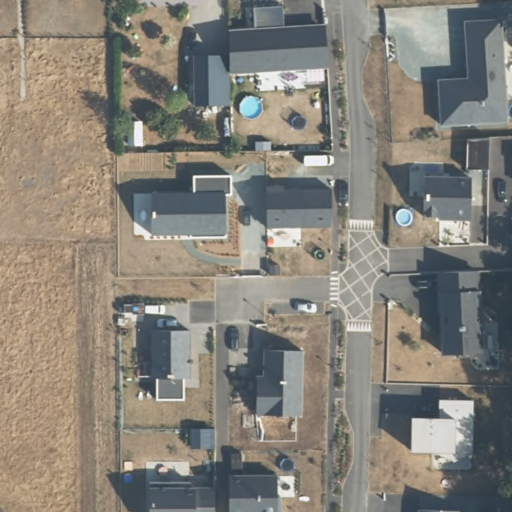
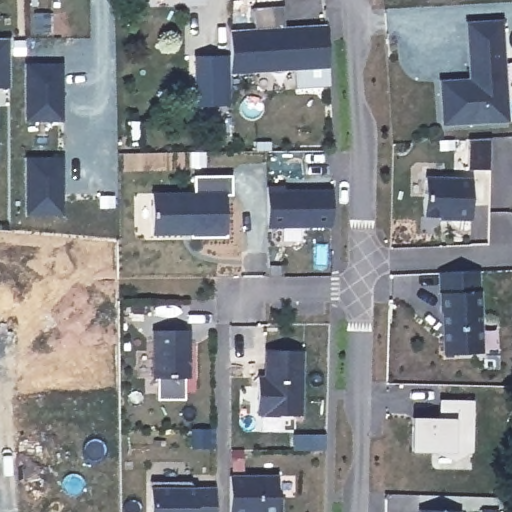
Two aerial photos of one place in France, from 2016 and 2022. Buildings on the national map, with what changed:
unchanged [(231,33),(255,30),(254,9),(281,9),(283,28),(324,25),(327,69),(233,74),(232,53),(231,33)]
unchanged [(467,25),(502,23),(506,124),(441,126),(438,82),(469,81),(467,25)]
new [(12,88),(0,88),(0,40),(9,40),(12,88)]
unchanged [(195,55),(232,53),(233,74),(234,103),(197,104),(195,55)]
new [(24,64),(62,64),(63,122),(24,121),(24,64)]
new [(467,140),(490,139),(489,171),(467,171),(467,140)]
new [(61,155),(61,215),(24,216),(24,156),(61,155)]
unchanged [(154,195),(197,193),(196,177),(231,176),(231,194),(230,195),(229,237),(195,238),(194,235),(154,235),(154,195)]
unchanged [(472,178),(472,221),(426,219),(426,176),(472,178)]
unchanged [(270,188),(285,187),(285,192),(333,189),(333,227),(268,228),(270,188)]
unchanged [(474,273),(479,354),(444,355),(438,274),(474,273)]
unchanged [(188,332),(189,379),(150,378),(150,333),(188,332)]
unchanged [(257,416),(257,373),(265,373),(267,352),(303,353),(302,417),(257,416)]
unchanged [(185,379),(185,399),(160,399),(159,378),(185,379)]
unchanged [(473,454),(413,454),(413,420),(438,420),(438,403),(474,403),(473,454)]
new [(327,436),(327,451),(309,451),(293,451),(293,436),(309,436),(327,436)]
unchanged [(231,476),(277,474),(279,512),(231,512),(231,476)]
unchanged [(152,485),(213,489),(214,512),(153,512),(152,485)]

